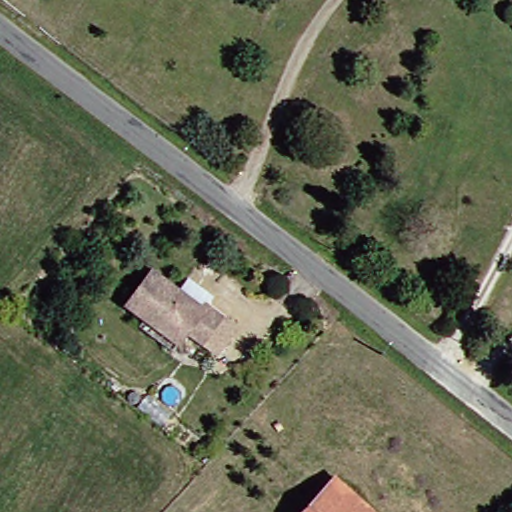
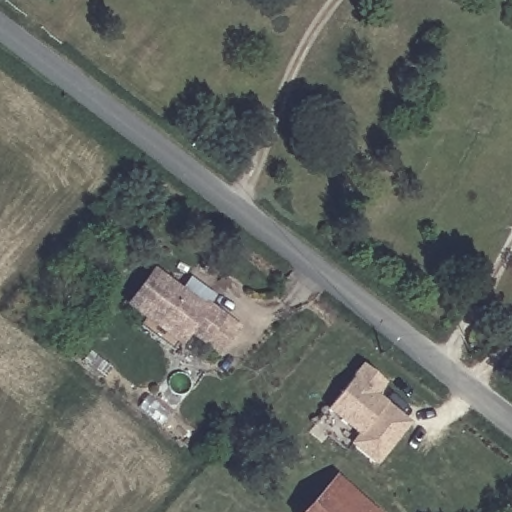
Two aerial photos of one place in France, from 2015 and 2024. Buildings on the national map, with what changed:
unchanged [(156,265),(180,284),(189,273),(217,293),(212,301),(227,312),(202,345),(186,336),(181,344),(175,339),(167,348),(141,329),(149,318),(125,303),(156,265)]
unchanged [(241,326),(223,355),(206,344),(226,314),(241,326)]
new [(378,386),(368,397),(379,406),(402,426),(368,466),(345,446),(352,438),(321,411),(357,369),(378,386)]
unchanged [(302,512),(339,473),(378,512),(302,512)]

